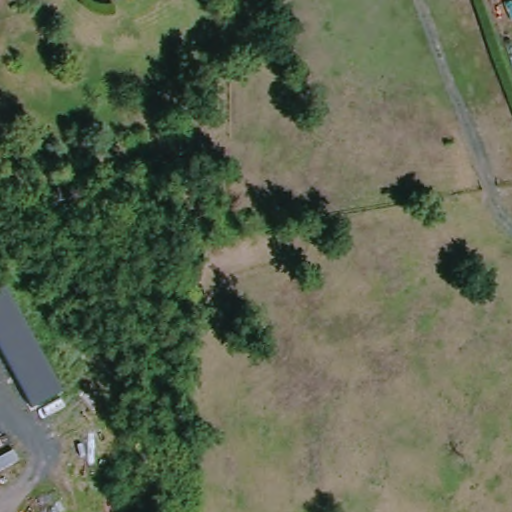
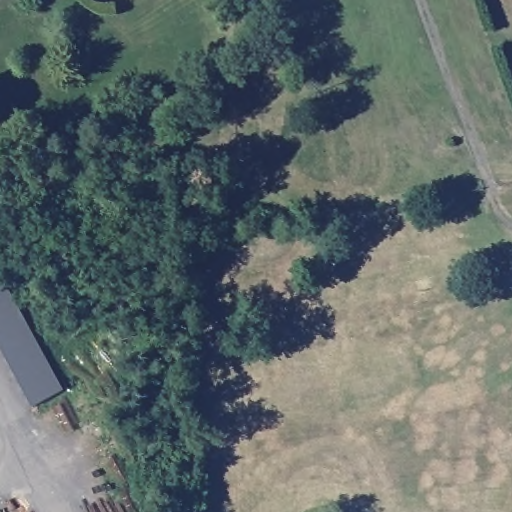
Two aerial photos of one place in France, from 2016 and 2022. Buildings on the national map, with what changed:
unchanged [(0,291),(7,288),(62,389),(32,406),(0,349),(0,291)]

